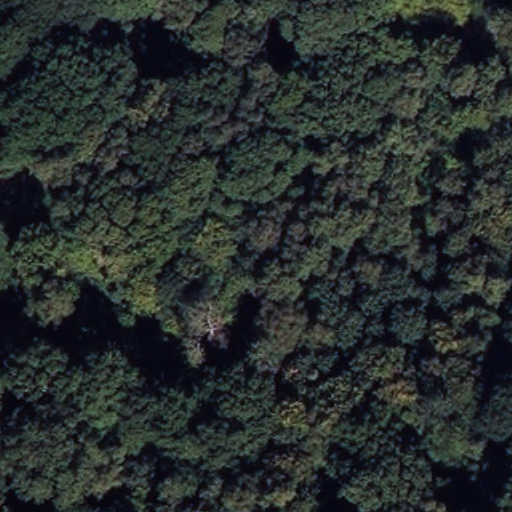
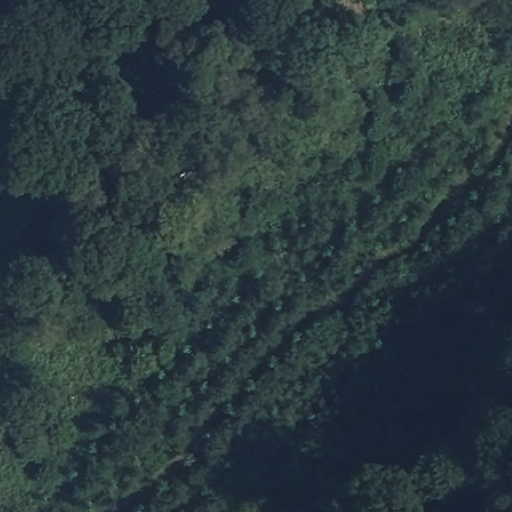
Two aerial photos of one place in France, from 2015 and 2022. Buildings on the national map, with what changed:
[]

